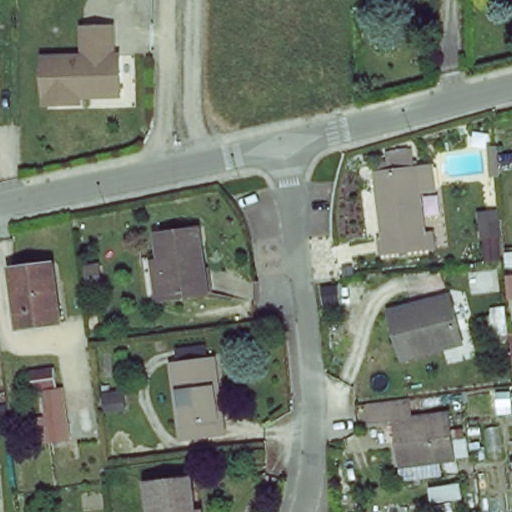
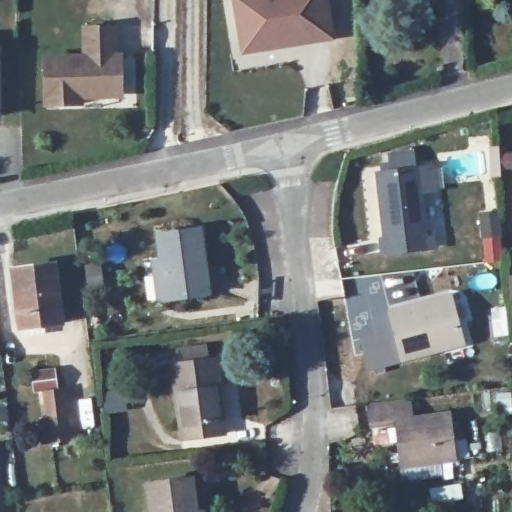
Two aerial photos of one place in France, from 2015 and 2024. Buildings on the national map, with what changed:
new [(241,55),(232,0),(329,0),(336,40),(241,55)]
unchanged [(112,27),(113,56),(118,56),(119,90),(78,91),(79,101),(44,102),(43,57),(83,56),(82,28),(112,27)]
unchanged [(384,255),(382,239),(386,237),(379,175),(419,170),(427,231),(435,230),(437,249),(384,255)]
unchanged [(158,270),(166,268),(162,236),(204,233),(212,297),(169,302),(160,303),(158,270)]
unchanged [(19,329),(12,270),(54,266),(60,325),(19,329)]
unchanged [(404,356),(392,312),(448,297),(460,341),(404,356)]
unchanged [(183,443),(174,366),(214,361),(223,440),(183,443)]
unchanged [(401,479),(401,464),(395,418),(366,422),(363,400),(404,395),(407,416),(447,411),(454,456),(431,460),(431,475),(401,479)]
unchanged [(57,425),(56,410),(71,408),(73,424),(57,425)]
unchanged [(201,512),(153,512),(149,483),(191,479),(194,510),(201,510),(201,512)]

